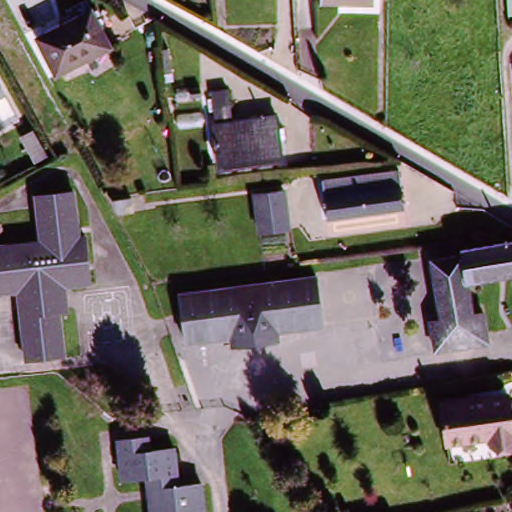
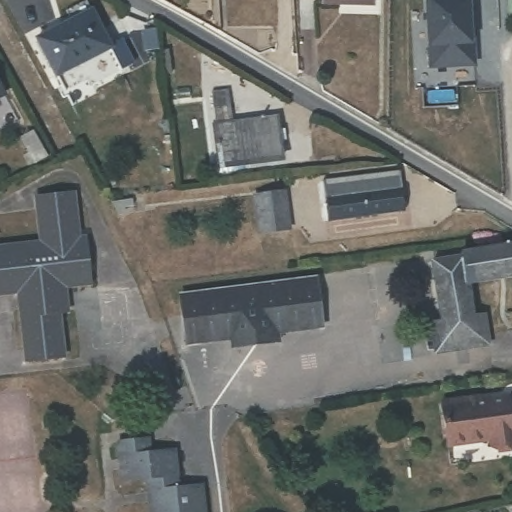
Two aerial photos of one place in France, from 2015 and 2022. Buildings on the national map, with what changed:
unchanged [(326,0),(374,0),(374,5),(326,7),(326,0)]
new [(476,66),(429,71),(423,0),(470,0),(476,66)]
unchanged [(92,12),(111,50),(57,78),(38,40),(92,12)]
unchanged [(0,94),(0,85),(4,92),(0,94)]
unchanged [(209,121),(214,121),(211,93),(228,91),(232,119),(273,114),(277,157),(214,163),(209,121)]
unchanged [(322,195),(320,181),(359,176),(406,169),(411,210),(366,215),(326,220),(322,195)]
unchanged [(285,191),(286,194),(288,213),(291,231),(259,234),(255,195),(285,191)]
unchanged [(59,236),(38,239),(32,196),(71,192),(76,236),(88,235),(91,278),(65,282),(59,236)]
unchanged [(68,306),(58,307),(63,352),(26,356),(18,287),(0,289),(0,243),(38,239),(59,236),(65,282),(68,306)]
unchanged [(474,288),(477,318),(479,337),(449,342),(445,322),(435,268),(463,262),(462,257),(512,250),(512,283),(474,288)]
unchanged [(321,271),(327,321),(284,327),(284,338),(237,345),(234,334),(193,341),(187,342),(185,326),(179,292),(321,271)]
unchanged [(487,318),(491,345),(437,355),(432,324),(445,322),(449,342),(479,337),(477,318),(487,318)]
unchanged [(509,392),(512,411),(512,440),(493,443),(492,436),(448,445),(441,410),(473,404),(472,399),(509,392)]
unchanged [(129,482),(124,446),(153,441),(155,454),(178,452),(182,485),(200,483),(203,512),(151,512),(148,480),(129,482)]

